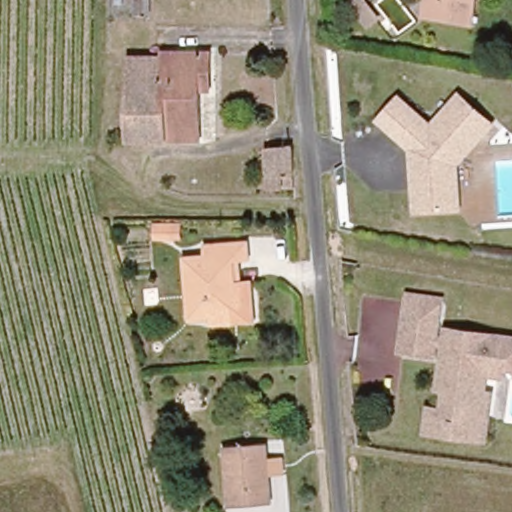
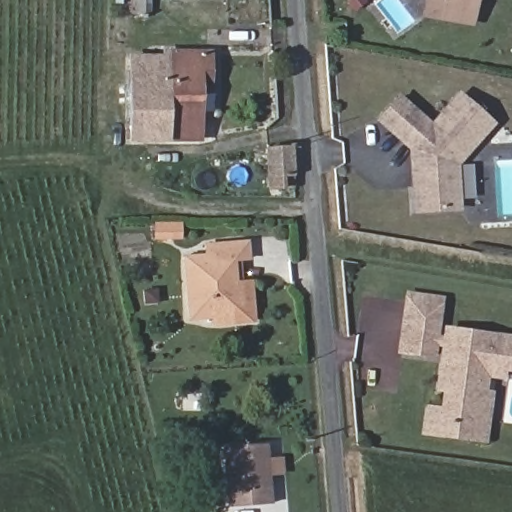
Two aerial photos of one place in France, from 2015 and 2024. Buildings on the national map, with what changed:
unchanged [(146,26),(145,0),(159,0),(160,26),(146,26)]
unchanged [(425,16),(428,0),(479,0),(475,23),(425,16)]
unchanged [(132,143),(131,61),(161,60),(161,52),(213,50),(214,76),(215,88),(201,89),(205,141),(141,142),(132,143)]
unchanged [(424,126),(452,97),(488,121),(450,159),(456,205),(412,210),(405,149),(372,120),(393,97),(424,126)]
unchanged [(269,150),(293,148),(295,184),(273,186),(270,160),(269,150)]
unchanged [(183,247),(159,248),(159,232),(182,232),(183,247)]
unchanged [(255,324),(213,325),(213,318),(190,319),(187,255),(209,255),(209,240),(256,241),(255,255),(244,255),(245,279),(254,279),(255,324)]
unchanged [(400,298),(431,302),(425,353),(394,350),(400,298)]
unchanged [(420,428),(423,403),(438,405),(441,382),(433,382),(440,325),(458,327),(457,337),(461,337),(462,327),(512,333),(512,362),(499,361),(497,371),(486,370),(477,436),(443,432),(420,428)]
unchanged [(272,503),(232,507),(226,447),(267,443),(272,503)]

